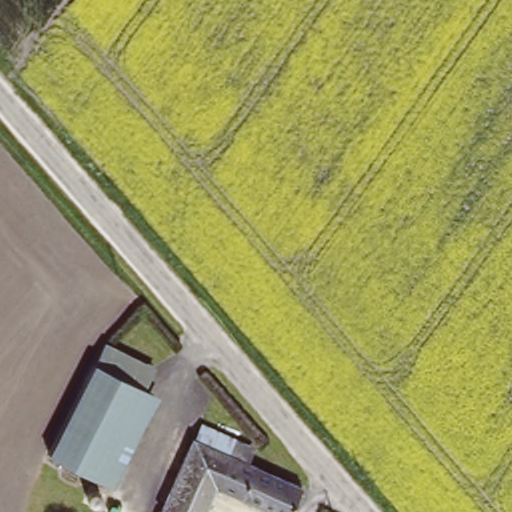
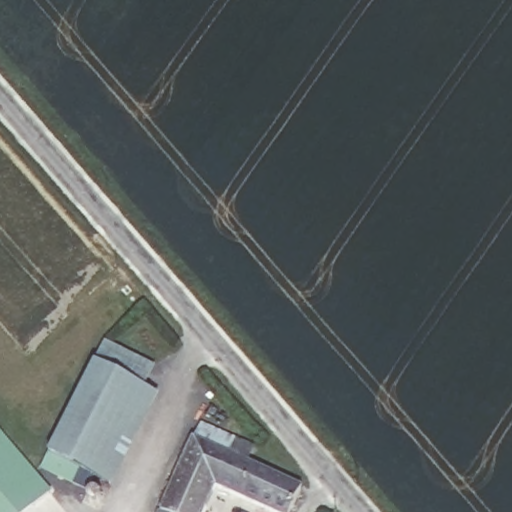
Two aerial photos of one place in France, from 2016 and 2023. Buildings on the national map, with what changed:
unchanged [(107,345),(154,369),(144,390),(95,367),(107,345)]
unchanged [(95,367),(144,390),(157,398),(112,489),(50,457),(95,367)]
unchanged [(265,512),(212,489),(202,512),(158,512),(190,441),(197,426),(246,450),(242,463),(297,487),(288,512),(265,512)]
new [(0,512),(0,431),(52,492),(29,512),(0,512)]

